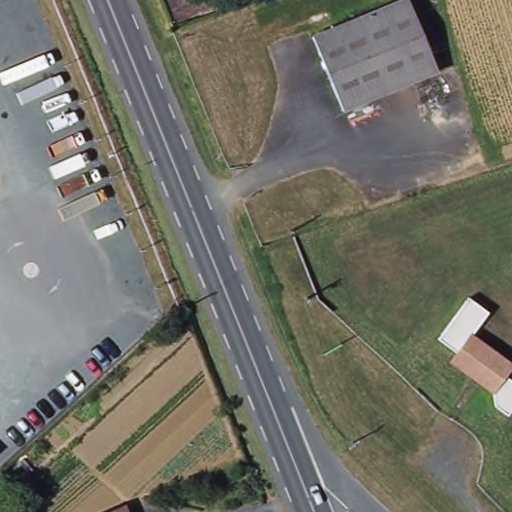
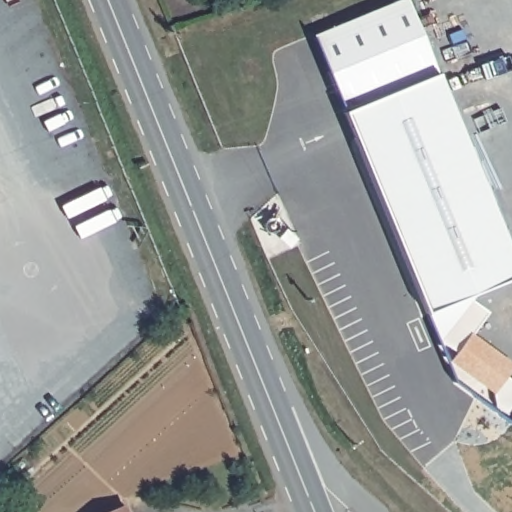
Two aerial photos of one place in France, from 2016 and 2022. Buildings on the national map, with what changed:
unchanged [(401,0),(413,0),(438,74),(342,107),(317,30),(401,0)]
new [(438,74),(512,255),(512,278),(466,300),(436,340),(425,312),(342,107),(438,74)]
unchanged [(512,369),(506,377),(512,381),(512,410),(506,418),(492,408),(491,395),(445,363),(453,353),(436,340),(466,300),(488,314),(472,335),(512,362),(512,369)]
unchanged [(132,512),(104,512),(127,502),(132,512)]

